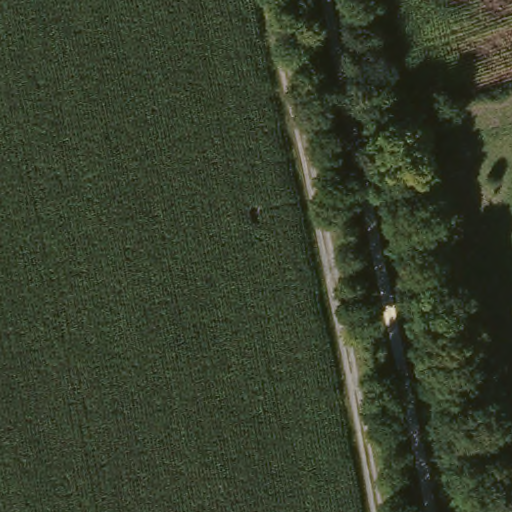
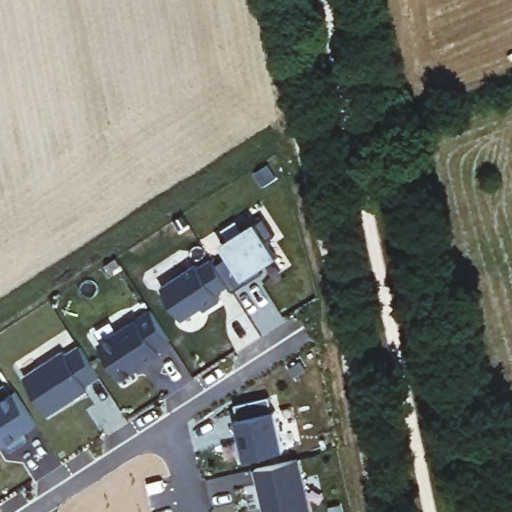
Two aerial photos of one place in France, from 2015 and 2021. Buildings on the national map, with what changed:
new [(231,288),(218,297),(221,302),(206,312),(202,308),(183,320),(161,287),(197,262),(201,266),(213,258),(231,288)]
new [(150,310),(169,340),(156,348),(159,353),(120,377),(98,343),(150,310)]
new [(67,346),(70,350),(83,341),(102,370),(89,380),(91,382),(51,408),(27,371),(67,346)]
new [(18,386),(39,419),(25,427),(30,435),(14,445),(9,438),(0,443),(0,388),(4,395),(18,386)]
new [(267,397),(270,412),(273,411),(281,450),(239,460),(235,440),(239,440),(234,420),(237,420),(233,405),(267,397)]
new [(295,460),(306,512),(262,512),(253,470),(295,460)]

